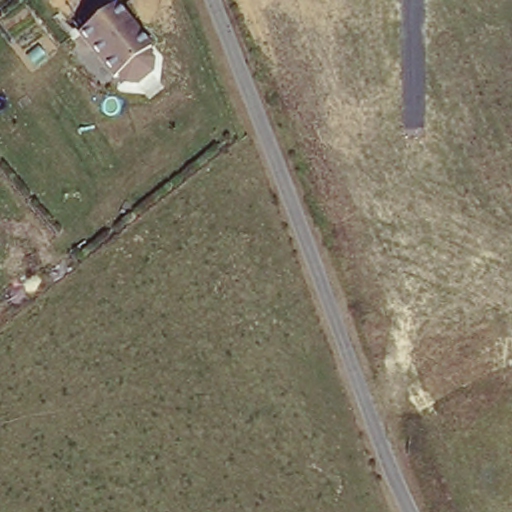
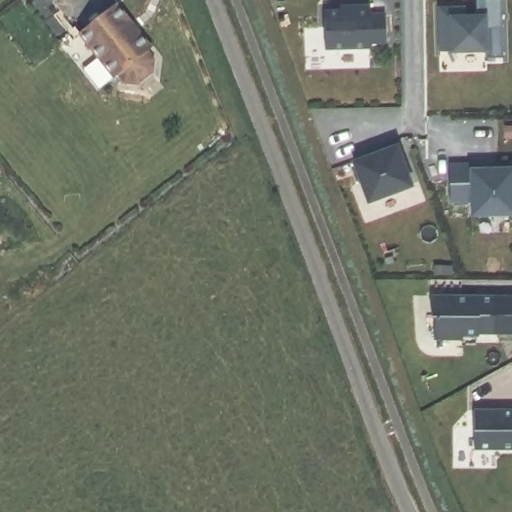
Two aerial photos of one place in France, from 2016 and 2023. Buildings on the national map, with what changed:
new [(482,55),(482,47),(436,47),(436,6),(460,6),(460,14),(473,14),(472,0),(496,0),(498,55),(482,55)]
unchanged [(156,50),(113,75),(84,40),(122,4),(156,50)]
new [(317,10),(348,10),(347,5),(363,5),(362,12),(380,12),(381,44),(365,45),(365,48),(318,50),(317,10)]
new [(373,152),(372,148),(390,140),(407,183),(366,200),(350,162),(373,152)]
new [(471,212),(470,197),(447,198),(447,164),(467,163),(467,166),(512,165),(512,189),(512,212),(471,212)]
new [(495,293),(493,330),(478,330),(477,331),(462,331),(461,336),(431,336),(431,294),(495,293)]
new [(512,408),(512,445),(471,446),(472,408),(512,408)]

